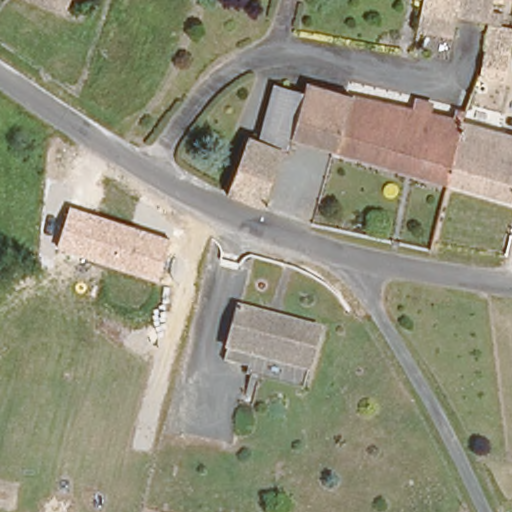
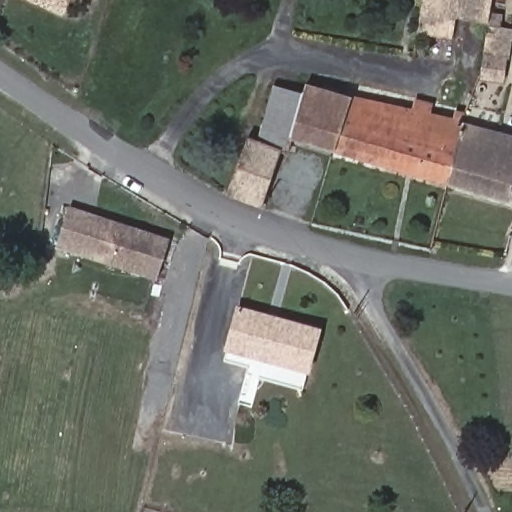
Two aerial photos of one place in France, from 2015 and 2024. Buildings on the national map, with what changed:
unchanged [(461,18),(457,39),(420,32),(425,0),(495,0),(490,26),(461,18)]
unchanged [(512,31),(512,42),(505,82),(483,78),(490,26),(495,0),(510,0),(503,29),(512,31)]
unchanged [(447,183),(292,141),(287,155),(282,154),(262,207),(231,195),(248,144),(258,145),(277,90),(306,97),(308,89),(415,114),(417,101),(435,105),(432,117),(465,126),(447,183)]
unchanged [(512,201),(447,183),(465,126),(512,139),(512,201)]
unchanged [(158,280),(56,247),(70,206),(171,238),(158,280)]
unchanged [(307,382),(247,370),(248,359),(227,354),(240,302),(322,322),(307,382)]

